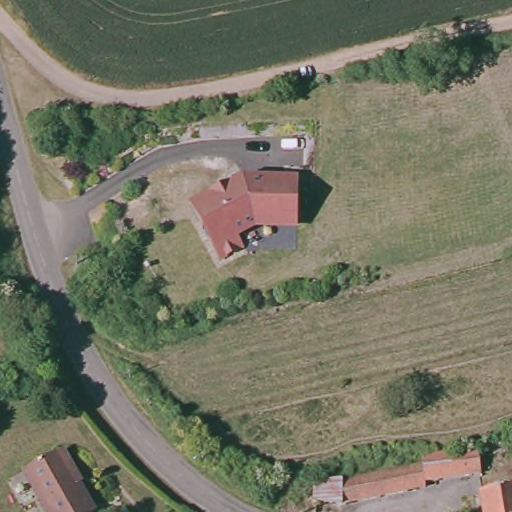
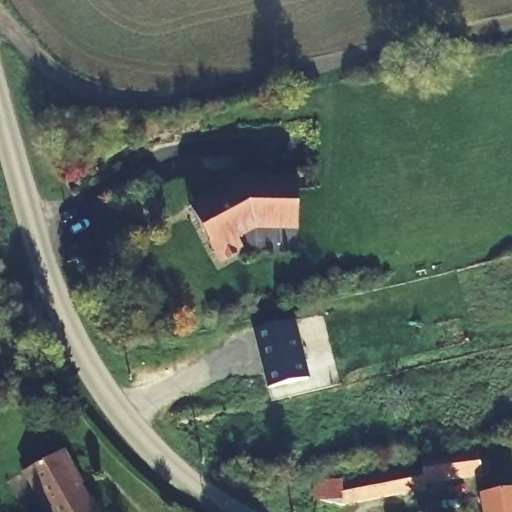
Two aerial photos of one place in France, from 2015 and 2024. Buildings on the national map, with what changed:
unchanged [(235,239),(242,252),(219,266),(198,229),(188,210),(208,199),(242,181),(284,182),(297,182),(296,230),(283,229),(253,229),(235,239)]
new [(295,320),(310,380),(268,389),(253,331),(295,320)]
demolished [(502,441),(506,457),(493,459),(489,443),(502,441)]
unchanged [(426,467),(425,460),(481,450),(484,461),(487,475),(435,485),(435,493),(349,509),(351,482),(426,467)]
unchanged [(94,512),(46,512),(25,476),(63,455),(94,512)]
unchanged [(351,482),(349,509),(348,512),(319,512),(321,487),(351,482)]
unchanged [(485,512),(482,497),(512,491),(512,512),(485,512)]

